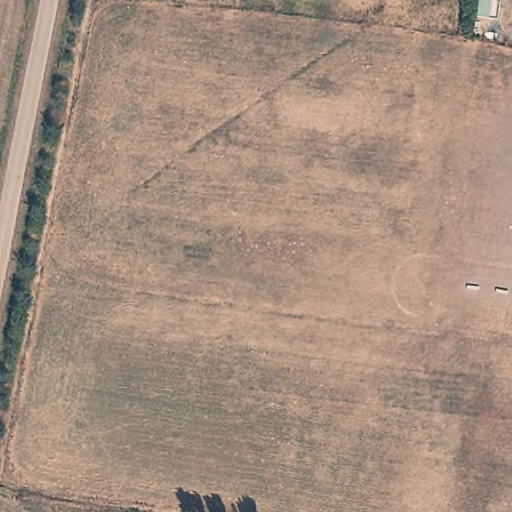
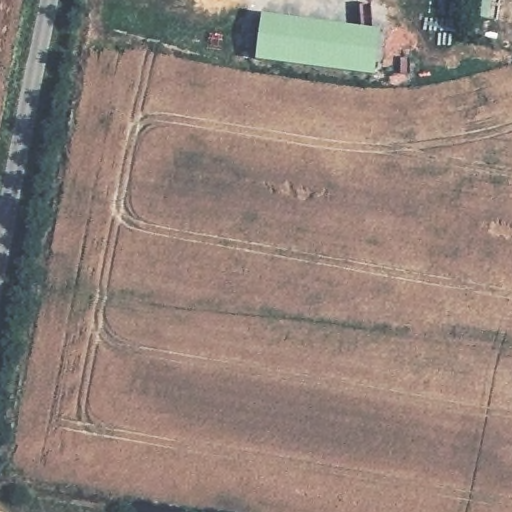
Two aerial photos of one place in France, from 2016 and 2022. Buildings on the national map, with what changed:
new [(263,13),(383,30),(378,76),(257,60),(263,13)]

